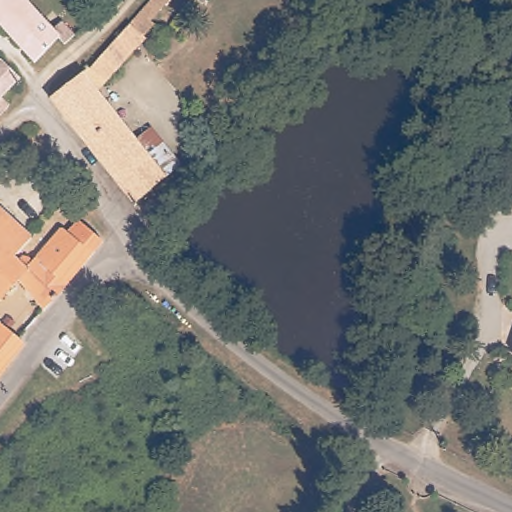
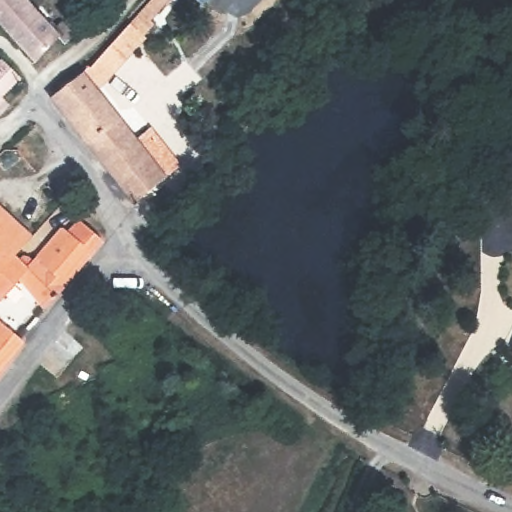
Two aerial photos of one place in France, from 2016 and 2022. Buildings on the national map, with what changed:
unchanged [(50,22),(58,17),(70,31),(59,40),(53,35),(30,55),(0,22),(0,0),(30,0),(50,22)]
unchanged [(51,97),(97,57),(139,14),(152,25),(142,35),(145,40),(95,92),(136,140),(149,130),(179,166),(134,205),(51,97)]
unchanged [(0,117),(0,57),(2,55),(20,75),(0,96),(11,107),(0,117)]
unchanged [(35,239),(19,257),(12,251),(0,263),(0,207),(35,239)]
unchanged [(33,256),(37,260),(66,225),(69,225),(72,228),(80,219),(100,239),(101,241),(48,307),(24,288),(11,303),(5,297),(1,300),(0,299),(0,263),(12,251),(19,257),(24,262),(27,257),(33,256)]
unchanged [(24,342),(14,355),(0,373),(0,322),(24,342)]

